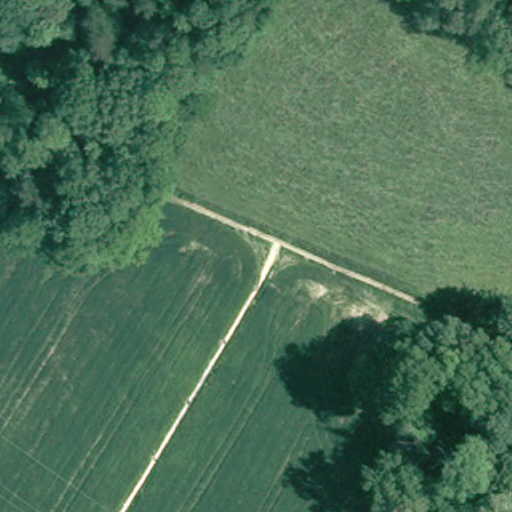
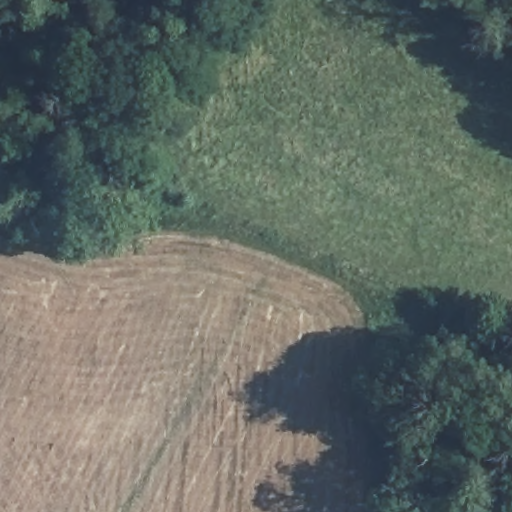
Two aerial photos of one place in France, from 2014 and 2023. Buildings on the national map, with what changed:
unchanged [(407,403),(387,398),(394,370),(414,375),(407,403)]

